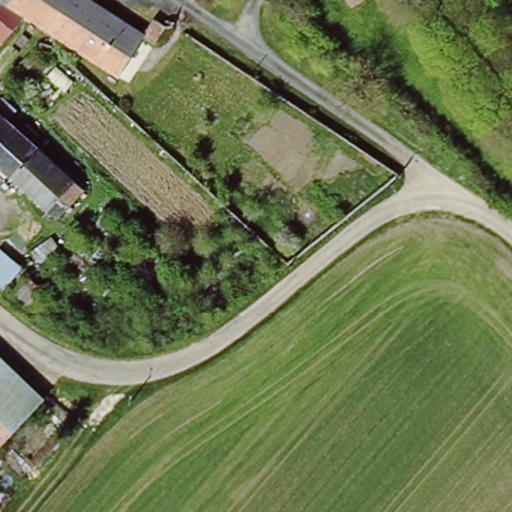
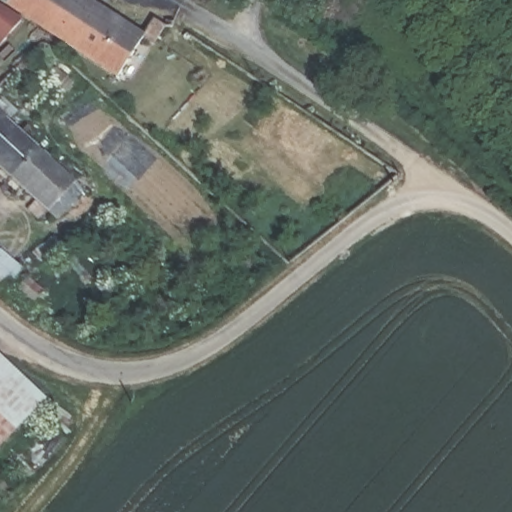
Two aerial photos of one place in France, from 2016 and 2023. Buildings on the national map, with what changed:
unchanged [(147,35),(119,77),(58,37),(25,15),(1,0),(94,0),(147,35)]
unchanged [(20,21),(1,44),(0,45),(0,44),(0,7),(20,21)]
unchanged [(169,27),(158,43),(147,35),(158,18),(169,27)]
unchanged [(82,189),(52,216),(0,163),(0,105),(82,189)]
unchanged [(34,400),(0,440),(0,366),(34,400)]

